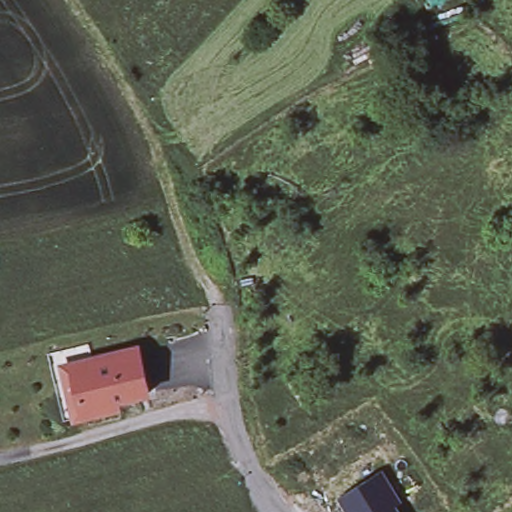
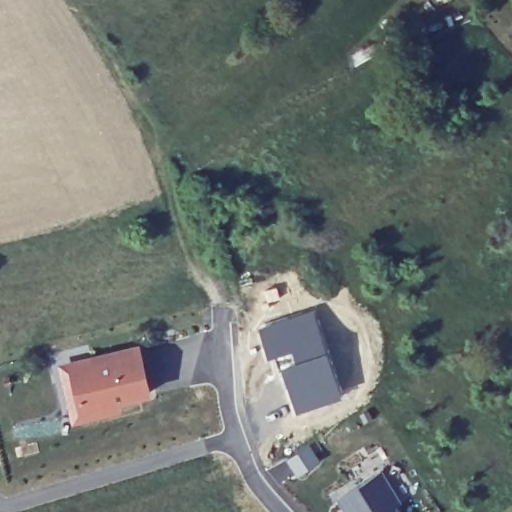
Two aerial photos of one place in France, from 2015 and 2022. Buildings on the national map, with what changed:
new [(343,399),(299,418),(274,355),(265,359),(257,330),(316,309),(343,399)]
unchanged [(64,397),(60,375),(80,370),(100,365),(99,356),(143,346),(149,377),(152,391),(122,399),(123,405),(110,408),(88,414),(67,419),(64,397)]
demolished [(503,429),(512,422),(512,440),(503,429)]
new [(319,462),(296,476),(288,459),(310,445),(319,462)]
new [(382,471),(401,502),(396,505),(401,512),(346,512),(337,498),(382,471)]

